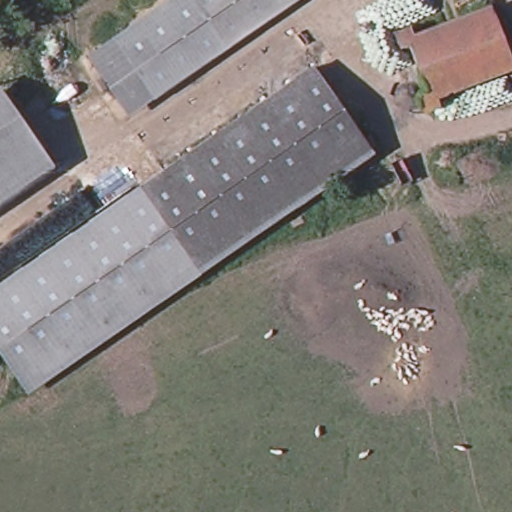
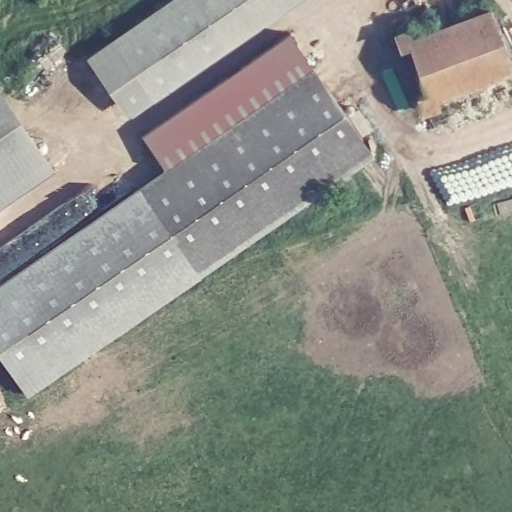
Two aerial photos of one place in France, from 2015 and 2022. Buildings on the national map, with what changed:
unchanged [(102,51),(174,0),(302,0),(143,111),(132,95),(102,51)]
unchanged [(432,100),(431,106),(427,109),(422,110),(418,108),(415,104),(415,99),(418,95),(422,92),(402,51),(398,52),(393,49),(391,45),(392,40),(396,36),(400,35),(405,37),(407,41),(485,9),(511,66),(432,100)]
new [(290,35),(312,71),(166,172),(142,135),(290,35)]
unchanged [(0,361),(0,288),(312,71),(363,144),(18,385),(0,361)]
unchanged [(59,166),(0,207),(0,83),(1,83),(49,151),(59,166)]
unchanged [(375,160),(29,401),(18,385),(363,144),(375,160)]

